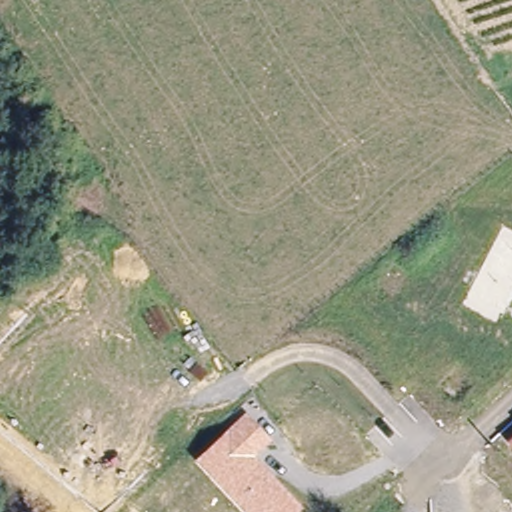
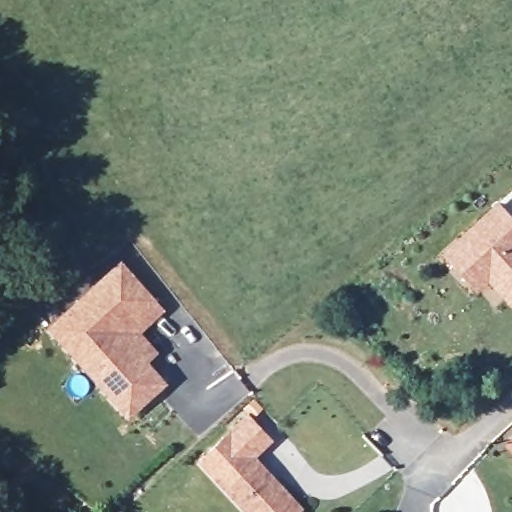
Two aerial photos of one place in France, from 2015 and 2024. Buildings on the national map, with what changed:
new [(475,291),(440,253),(497,201),(512,217),(512,307),(486,281),(475,291)]
new [(140,330),(155,350),(147,360),(163,381),(126,415),(45,326),(121,261),(161,310),(140,330)]
unchanged [(299,512),(245,512),(197,460),(246,412),(272,439),(256,456),(303,508),(299,512)]

